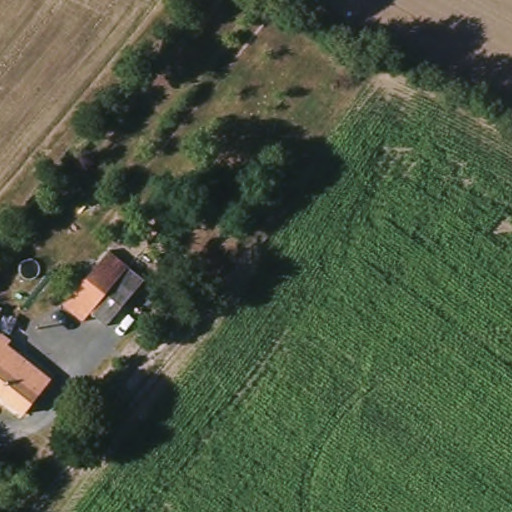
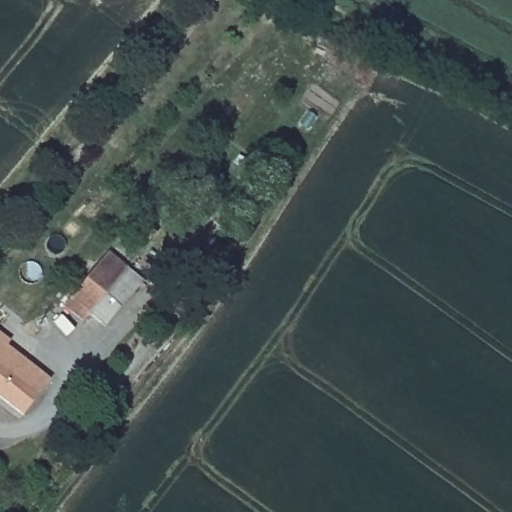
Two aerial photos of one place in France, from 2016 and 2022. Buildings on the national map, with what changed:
unchanged [(138,258),(99,303),(93,310),(78,296),(123,245),(138,258)]
unchanged [(155,271),(116,318),(99,303),(138,258),(155,271)]
unchanged [(26,411),(0,392),(0,312),(0,311),(24,326),(13,339),(10,343),(54,375),(26,411)]

